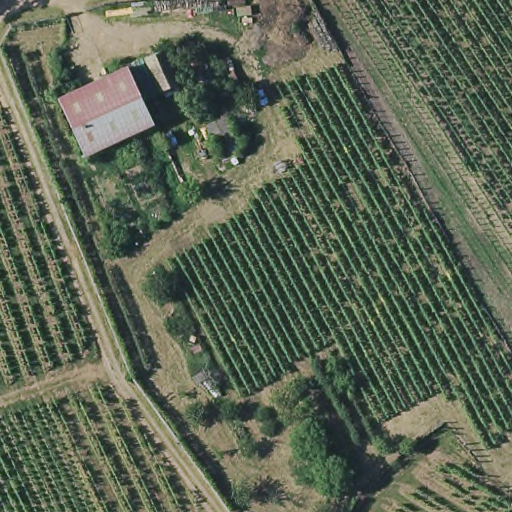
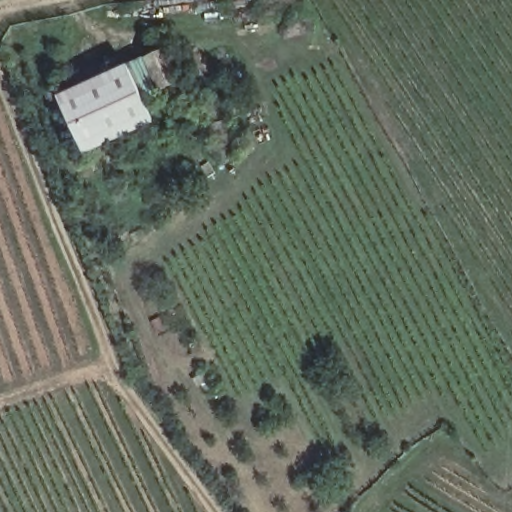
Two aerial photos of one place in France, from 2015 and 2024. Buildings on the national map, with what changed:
unchanged [(147,59),(166,51),(180,82),(161,91),(147,59)]
unchanged [(107,76),(130,67),(154,122),(135,130),(107,76)]
unchanged [(119,137),(92,82),(107,76),(135,130),(119,137)]
unchanged [(76,90),(92,82),(119,137),(102,145),(76,90)]
unchanged [(83,153),(59,97),(76,90),(102,145),(83,153)]

